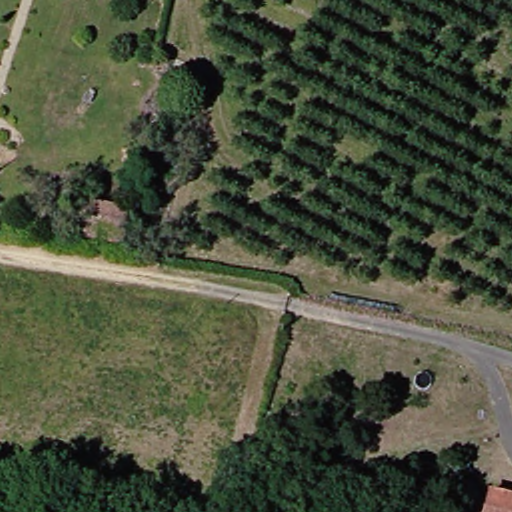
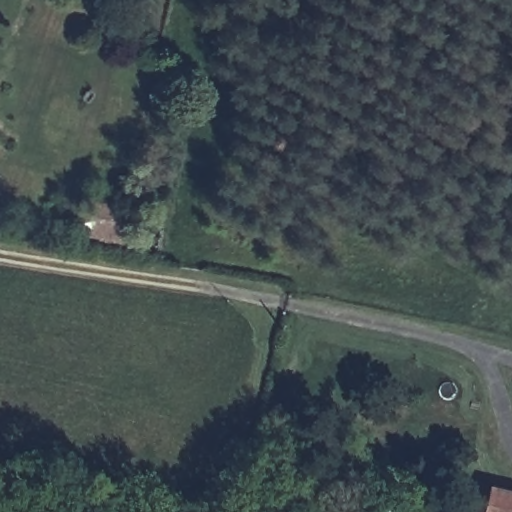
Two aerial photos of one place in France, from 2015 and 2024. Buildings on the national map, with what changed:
unchanged [(121,208),(113,244),(65,234),(70,196),(121,208)]
unchanged [(480,489),(512,498),(512,512),(475,512),(480,489)]

